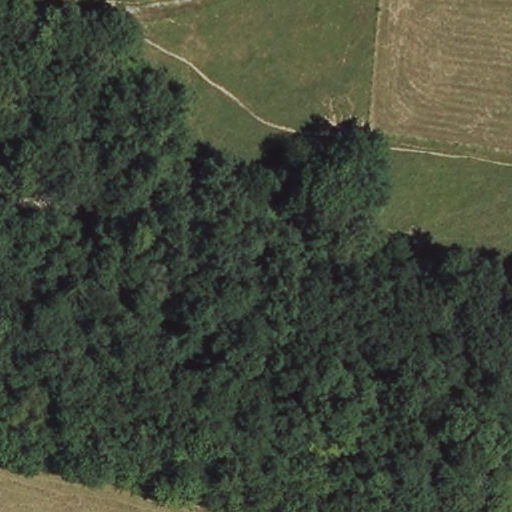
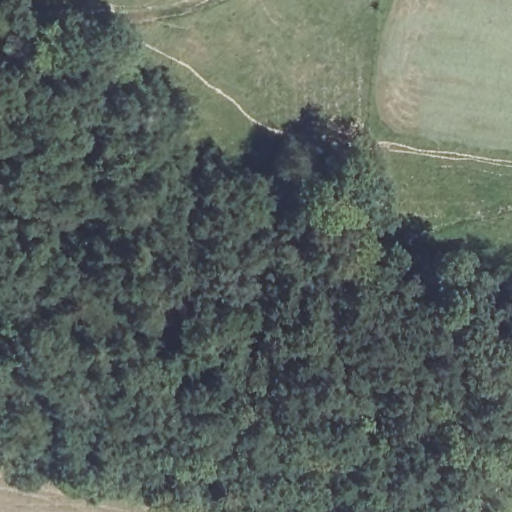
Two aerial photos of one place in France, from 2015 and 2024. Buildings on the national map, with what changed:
[]

